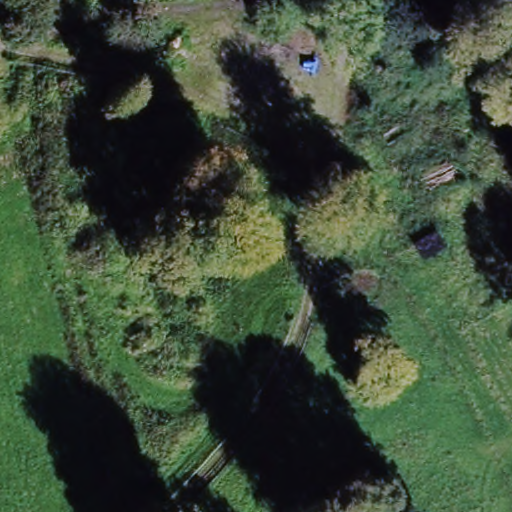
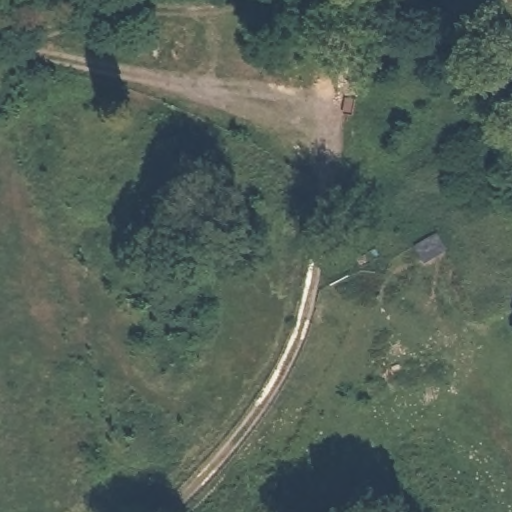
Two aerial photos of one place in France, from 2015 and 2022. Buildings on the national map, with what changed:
[]

